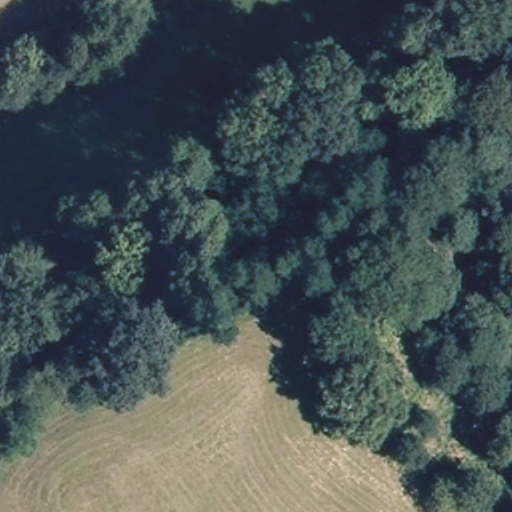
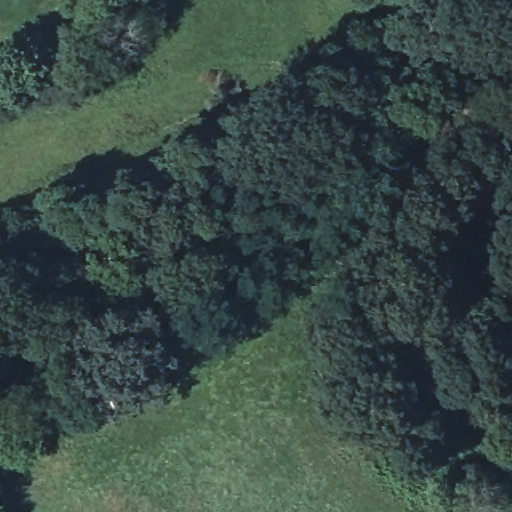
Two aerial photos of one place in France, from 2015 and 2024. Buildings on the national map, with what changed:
[]

